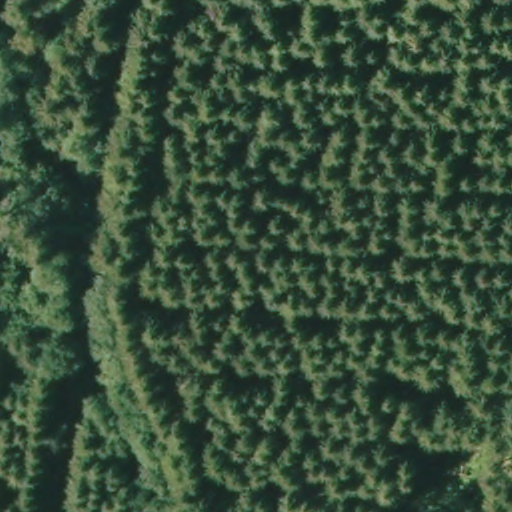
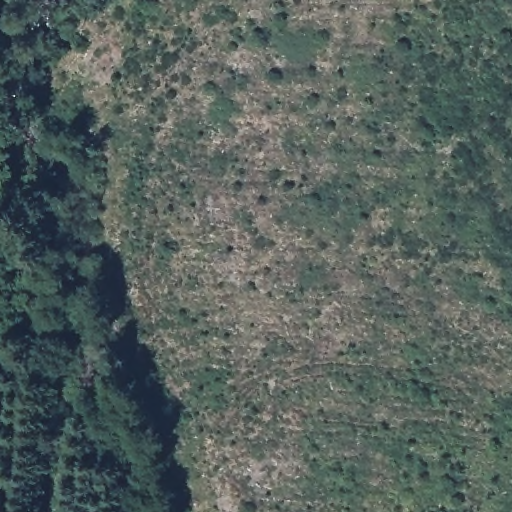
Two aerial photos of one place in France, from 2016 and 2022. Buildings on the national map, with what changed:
[]

